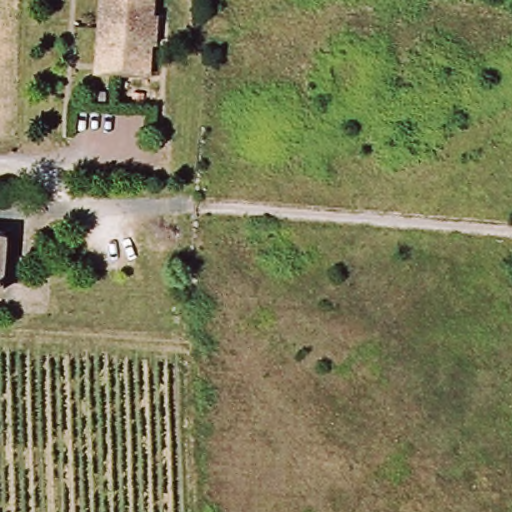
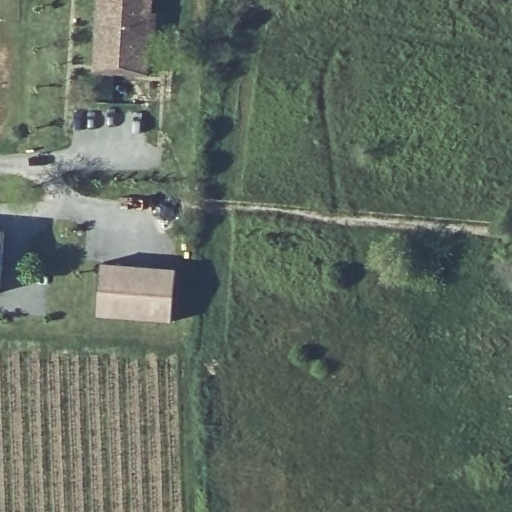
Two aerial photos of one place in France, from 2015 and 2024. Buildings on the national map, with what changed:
unchanged [(95,61),(98,0),(152,0),(149,73),(129,71),(95,69),(95,61)]
unchanged [(4,235),(0,288),(0,235),(4,235)]
new [(177,268),(174,320),(99,313),(103,262),(177,268)]

